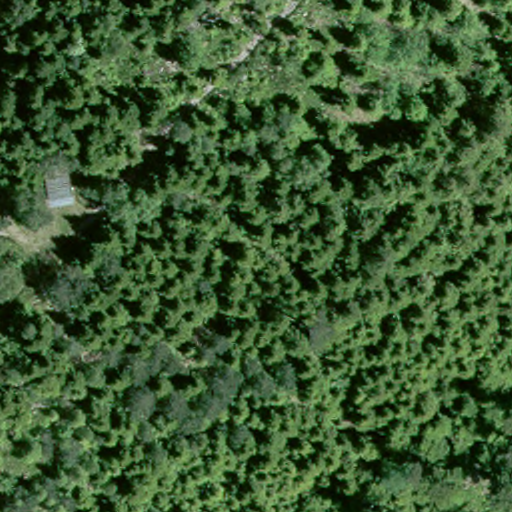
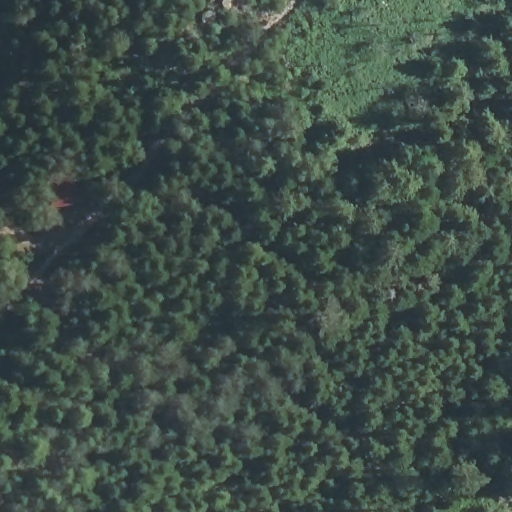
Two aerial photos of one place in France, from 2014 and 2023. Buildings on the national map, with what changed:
unchanged [(47,182),(79,175),(81,207),(52,208),(47,182)]

